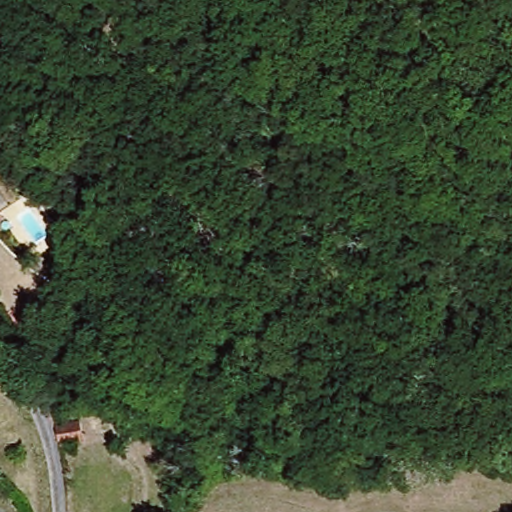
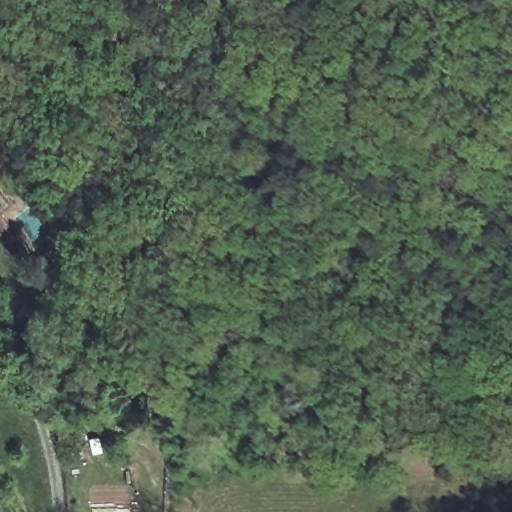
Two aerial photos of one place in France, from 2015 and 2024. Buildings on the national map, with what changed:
unchanged [(4,238),(0,240),(0,233),(4,238)]

